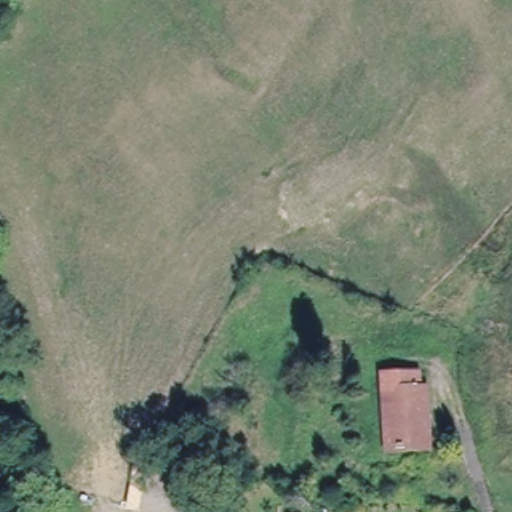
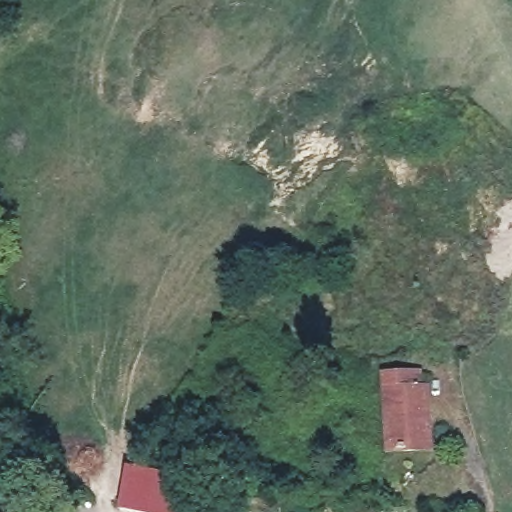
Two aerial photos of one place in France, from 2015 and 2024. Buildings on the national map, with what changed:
unchanged [(429,447),(392,448),(391,424),(387,425),(385,374),(420,372),(420,387),(426,387),(429,447)]
new [(124,463),(177,475),(171,512),(149,512),(117,507),(124,463)]

